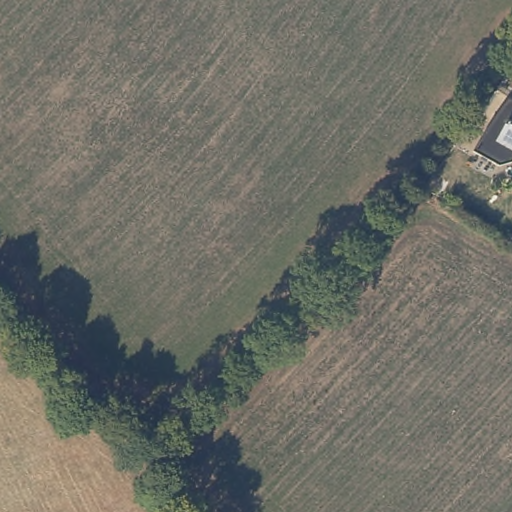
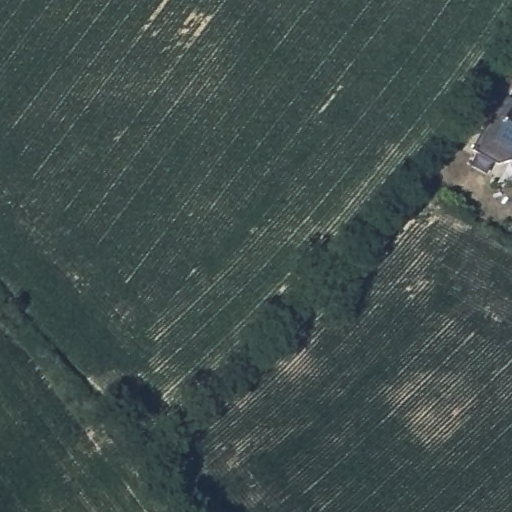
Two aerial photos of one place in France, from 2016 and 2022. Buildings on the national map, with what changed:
unchanged [(512,101),(512,133),(500,126),(512,101)]

